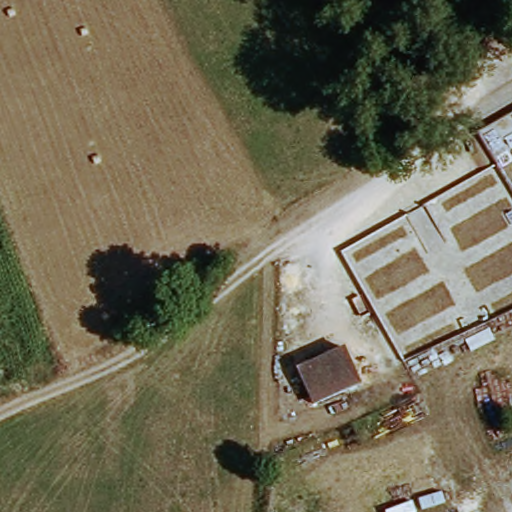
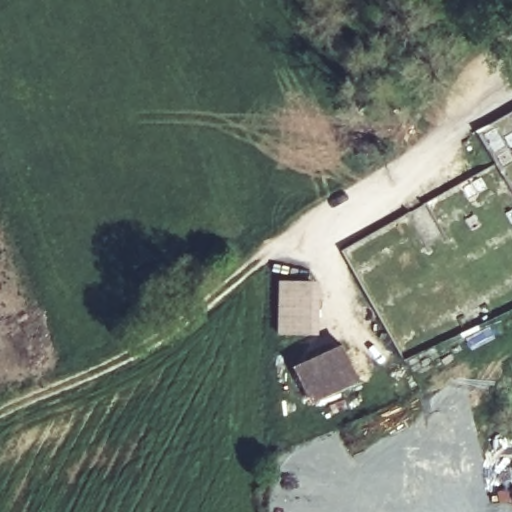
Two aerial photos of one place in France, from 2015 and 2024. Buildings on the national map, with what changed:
new [(321,284),(320,335),(279,334),(281,283),(321,284)]
unchanged [(357,379),(308,402),(292,368),(341,345),(357,379)]

